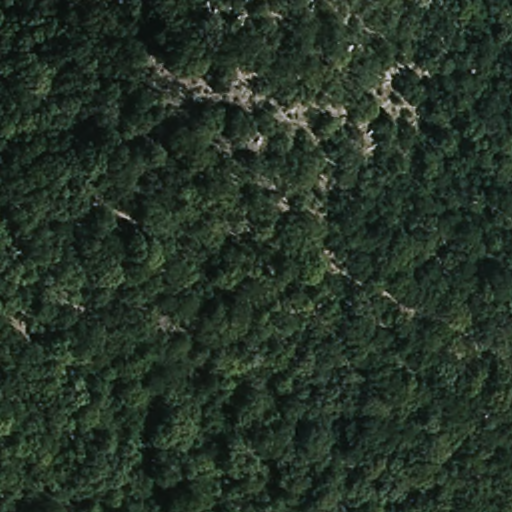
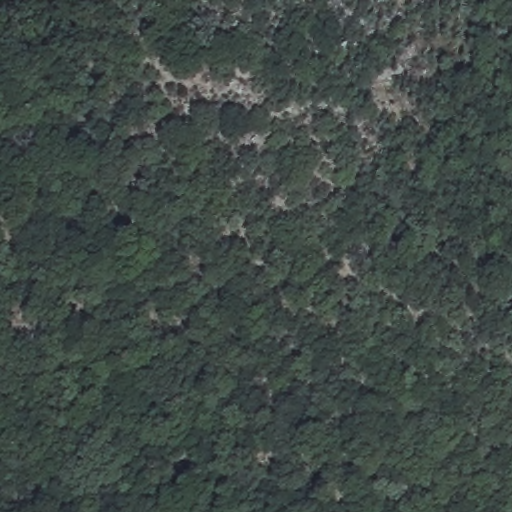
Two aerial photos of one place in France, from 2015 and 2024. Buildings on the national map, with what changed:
[]

